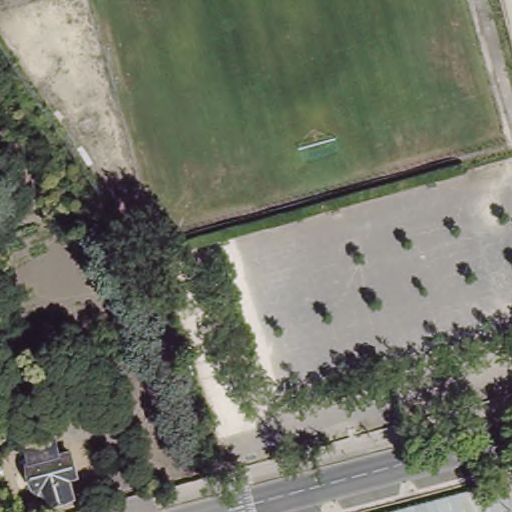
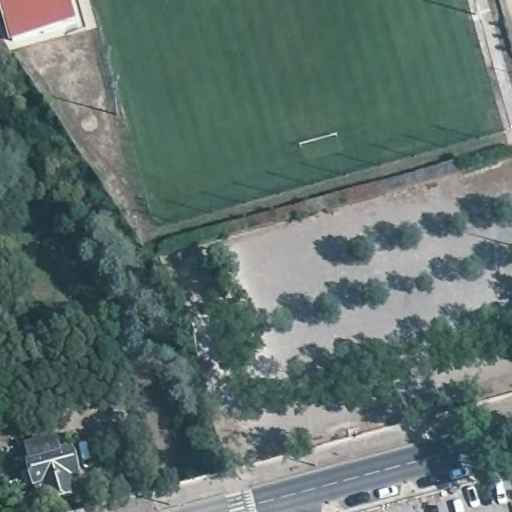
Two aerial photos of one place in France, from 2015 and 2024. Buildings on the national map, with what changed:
new [(9,44),(0,13),(0,0),(73,0),(79,24),(9,44)]
unchanged [(25,460),(30,459),(25,446),(60,434),(65,448),(76,444),(85,469),(75,472),(81,490),(39,503),(25,460)]

